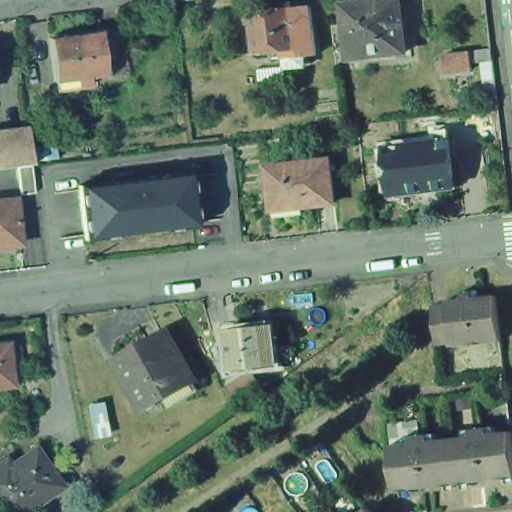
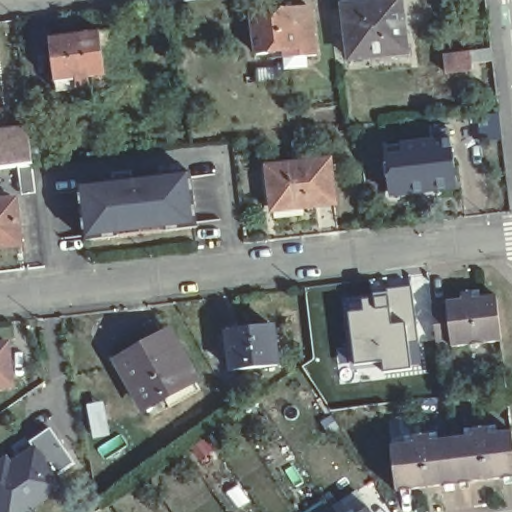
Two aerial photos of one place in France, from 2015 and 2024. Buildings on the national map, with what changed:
unchanged [(397,0),(404,58),(349,65),(343,6),(393,0),(397,0)]
unchanged [(293,64),(292,55),(264,59),(260,18),(301,14),(316,12),(319,32),(323,60),(293,64)]
unchanged [(124,30),(129,75),(91,79),(93,86),(59,89),(52,39),(124,30)]
unchanged [(475,52),(477,70),(449,73),(447,55),(475,52)]
unchanged [(4,79),(0,80),(0,67),(3,66),(4,79)]
unchanged [(36,164),(33,164),(14,167),(0,168),(0,133),(31,130),(36,164)]
unchanged [(448,140),(454,189),(388,196),(383,147),(448,140)]
unchanged [(328,160),(332,204),(269,211),(264,168),(328,160)]
unchanged [(85,190),(191,173),(198,229),(89,241),(85,190)]
unchanged [(23,244),(0,247),(0,201),(18,198),(23,244)]
new [(410,286),(418,344),(412,346),(406,323),(392,324),(388,293),(387,289),(410,286)]
new [(360,308),(359,298),(388,293),(392,324),(406,323),(412,346),(416,368),(383,372),(381,362),(354,365),(348,310),(360,308)]
unchanged [(431,308),(446,307),(446,302),(461,301),(460,294),(478,293),(478,299),(497,297),(501,342),(451,347),(450,344),(436,345),(431,308)]
unchanged [(275,326),(279,366),(233,370),(229,331),(275,326)]
unchanged [(173,329),(203,387),(171,404),(166,393),(146,403),(122,358),(173,329)]
unchanged [(10,385),(0,387),(0,344),(5,343),(10,385)]
unchanged [(217,347),(223,356),(214,361),(209,352),(217,347)]
unchanged [(253,373),(266,389),(241,406),(229,390),(253,373)]
unchanged [(98,392),(103,421),(88,424),(83,395),(98,392)]
unchanged [(498,433),(498,439),(512,437),(512,485),(489,487),(484,434),(498,433)]
unchanged [(489,487),(460,491),(455,444),(468,442),(468,436),(484,434),(489,487)]
unchanged [(460,491),(431,494),(424,441),(439,439),(439,446),(455,444),(460,491)]
unchanged [(431,494),(399,497),(395,450),(409,449),(409,443),(424,441),(431,494)]
unchanged [(58,483),(17,512),(0,512),(0,467),(32,444),(58,483)]

